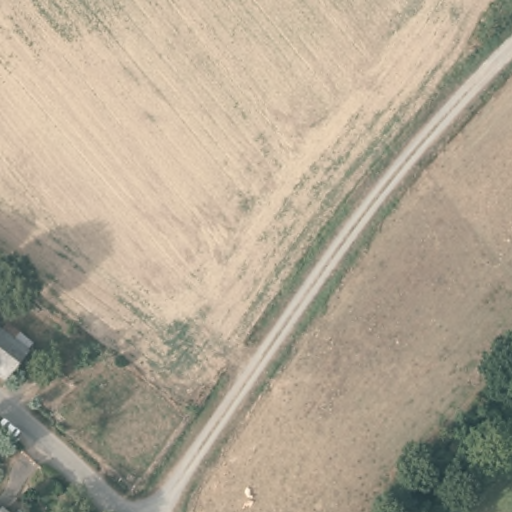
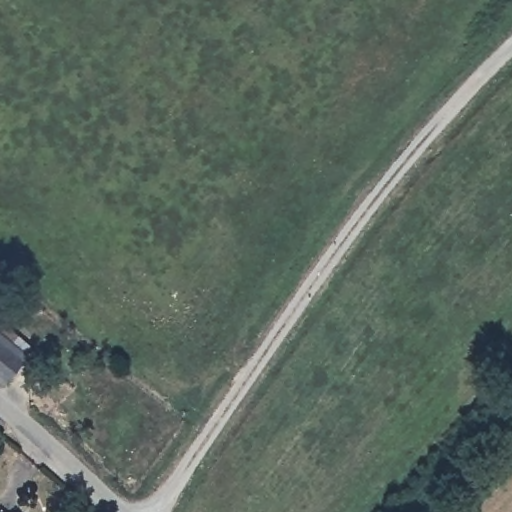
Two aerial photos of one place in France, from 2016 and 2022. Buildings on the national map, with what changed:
unchanged [(0,335),(9,325),(35,347),(27,357),(29,359),(8,387),(0,381),(0,335)]

